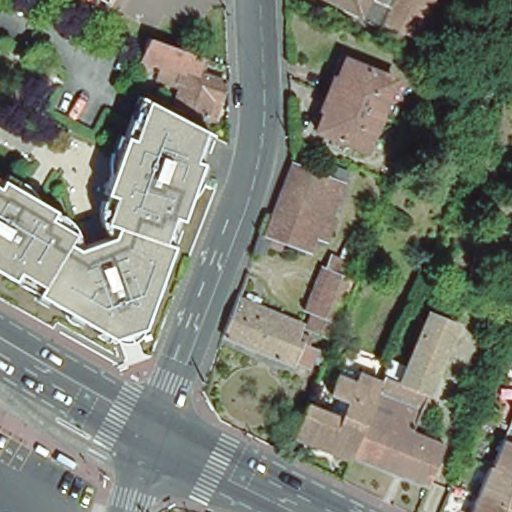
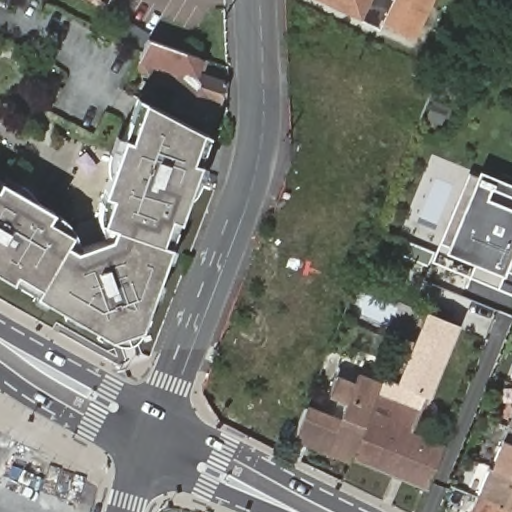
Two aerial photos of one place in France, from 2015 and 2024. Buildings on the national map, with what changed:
unchanged [(99,0),(108,0),(105,4),(99,0)]
unchanged [(355,21),(357,18),(331,5),(321,0),(394,0),(382,25),(378,33),(355,21)]
unchanged [(382,25),(394,0),(433,0),(413,41),(382,25)]
unchanged [(215,123),(184,112),(192,89),(150,74),(159,45),(189,55),(199,59),(202,60),(198,75),(236,89),(230,108),(223,125),(215,123)]
demolished [(330,94),(344,59),(393,79),(379,114),(330,94)]
demolished [(365,150),(315,131),(330,94),(379,114),(365,150)]
unchanged [(119,177),(119,174),(118,173),(118,170),(118,169),(118,166),(118,164),(118,163),(119,160),(119,159),(125,139),(133,141),(147,101),(154,105),(146,129),(135,159),(142,161),(134,188),(126,185),(121,201),(114,199),(120,180),(120,179),(119,177)]
unchanged [(0,179),(10,185),(14,178),(30,188),(32,189),(35,190),(36,192),(38,194),(40,195),(41,198),(43,199),(44,202),(45,204),(45,207),(63,217),(59,224),(82,239),(76,249),(86,254),(121,242),(125,233),(114,229),(123,202),(121,201),(126,185),(134,188),(142,161),(135,159),(146,129),(154,105),(156,106),(165,111),(199,129),(205,132),(210,134),(219,139),(209,168),(216,170),(210,189),(209,191),(208,193),(207,195),(206,197),(205,199),(203,201),(201,203),(200,204),(197,205),(195,207),(180,250),(186,253),(182,266),(176,264),(170,283),(161,306),(156,322),(162,324),(159,335),(152,334),(149,334),(150,340),(140,343),(138,337),(130,339),(131,345),(121,348),(120,342),(119,342),(115,348),(105,341),(108,335),(94,327),(72,315),(56,305),(52,310),(41,304),(45,299),(4,274),(2,274),(0,275),(0,179)]
demolished [(258,234),(265,235),(270,220),(286,179),(291,164),(318,175),(323,163),(347,173),(331,220),(334,222),(325,243),(315,239),(309,254),(285,244),(282,253),(266,246),(261,258),(252,254),(258,234)]
new [(470,279),(477,259),(448,247),(460,220),(452,217),(471,173),(512,189),(512,296),(470,279)]
demolished [(360,266),(333,337),(310,328),(316,311),(309,308),(323,270),(330,273),(331,270),(328,269),(333,255),(342,259),(360,266)]
demolished [(241,297),(304,324),(301,331),(313,337),(310,344),(320,349),(312,368),(297,362),(295,366),(226,336),(241,297)]
unchanged [(400,383),(430,313),(456,324),(426,394),(413,426),(410,432),(367,414),(383,376),(400,383)]
unchanged [(336,419),(342,405),(326,399),(336,376),(355,384),(358,374),(374,379),(376,373),(383,376),(367,414),(350,456),(347,464),(293,447),(307,408),(336,419)]
unchanged [(474,495),(486,464),(490,466),(506,426),(512,413),(512,512),(467,512),(474,495)]
unchanged [(367,414),(410,432),(443,445),(426,487),(350,456),(367,414)]
unchanged [(62,459),(65,453),(80,462),(77,467),(62,459)]

